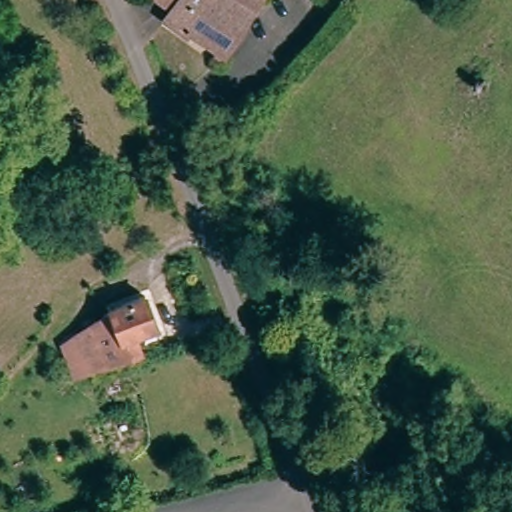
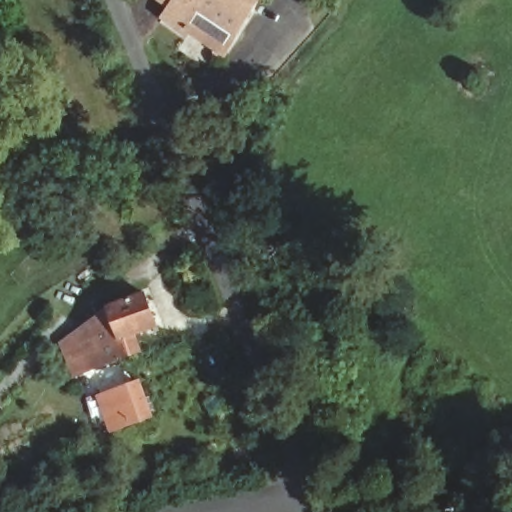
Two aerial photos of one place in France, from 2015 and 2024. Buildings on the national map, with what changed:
unchanged [(182,31),(165,20),(170,11),(153,1),(151,0),(253,0),(230,37),(194,12),(182,31)]
unchanged [(135,338),(140,351),(80,372),(80,369),(73,352),(81,349),(75,333),(115,306),(144,295),(157,330),(135,338)]
new [(156,417),(110,435),(95,396),(142,379),(156,417)]

